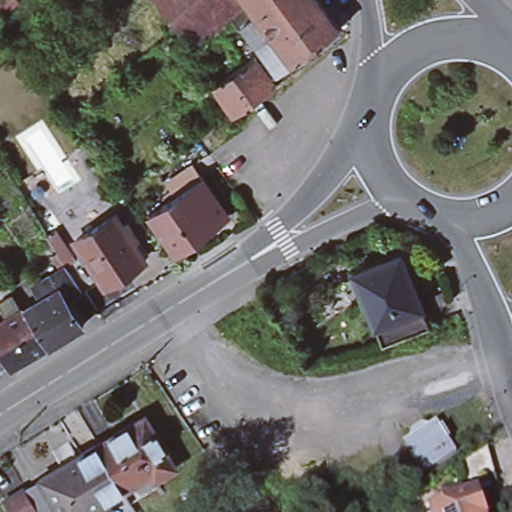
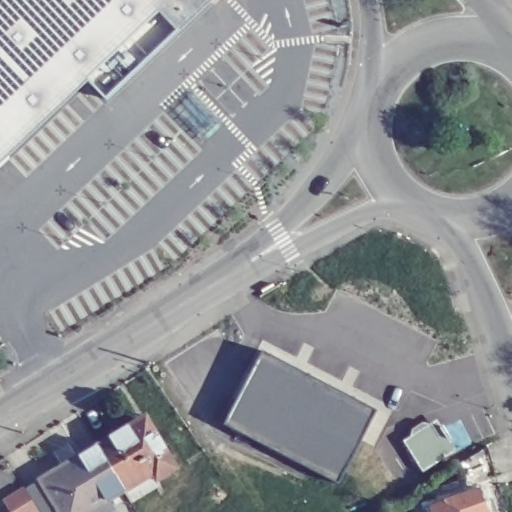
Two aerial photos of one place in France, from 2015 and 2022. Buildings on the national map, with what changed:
demolished [(17,1),(3,13),(0,10),(0,0),(16,0),(17,1)]
new [(178,35),(108,99),(87,79),(0,162),(0,0),(214,0),(178,35)]
demolished [(256,13),(242,23),(243,24),(238,28),(230,16),(192,49),(159,5),(155,0),(247,0),(256,13)]
demolished [(292,62),(256,13),(247,0),(320,0),(340,28),(292,62)]
demolished [(320,0),(336,0),(351,20),(340,28),(320,0)]
demolished [(278,72),(243,24),(242,23),(256,13),(292,62),(278,72)]
demolished [(255,56),(271,78),(276,86),(233,116),(214,86),(255,56)]
demolished [(175,252),(150,214),(166,202),(163,197),(171,191),(165,184),(193,165),(202,178),(228,215),(175,252)]
demolished [(83,332),(48,353),(24,315),(39,305),(32,293),(61,275),(51,260),(56,257),(46,242),(55,236),(75,266),(85,260),(76,246),(114,222),(121,233),(127,230),(148,262),(142,266),(104,290),(101,285),(82,297),(99,322),(93,326),(83,332)]
unchanged [(423,297),(422,298),(375,318),(353,263),(400,243),(423,297)]
unchanged [(375,318),(422,298),(429,317),(383,336),(375,318)]
demolished [(48,353),(12,375),(0,357),(0,329),(24,315),(48,353)]
new [(375,411),(340,485),(226,426),(263,354),(375,411)]
unchanged [(155,480),(126,497),(125,498),(119,487),(118,486),(91,440),(135,414),(140,411),(155,434),(172,463),(152,475),(155,480)]
unchanged [(408,428),(423,418),(429,424),(441,426),(456,450),(422,472),(407,448),(410,436),(408,428)]
unchanged [(57,512),(34,475),(91,440),(118,486),(95,500),(101,510),(96,512),(57,512)]
unchanged [(454,469),(483,451),(489,475),(460,486),(454,469)]
unchanged [(38,511),(36,512),(12,512),(5,500),(24,488),(38,511)]
unchanged [(484,512),(425,512),(425,511),(433,508),(431,501),(456,493),(460,500),(473,495),(474,498),(479,497),(484,512)]

